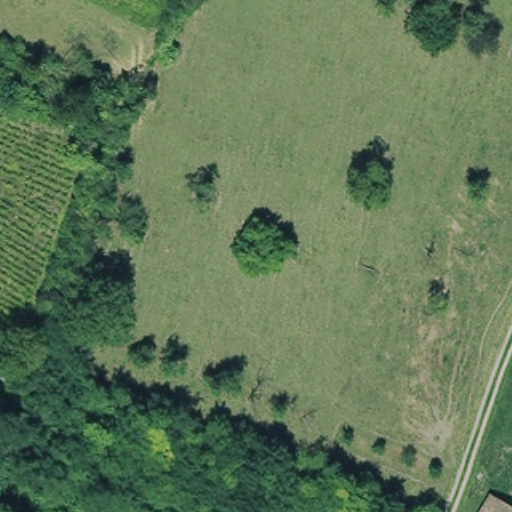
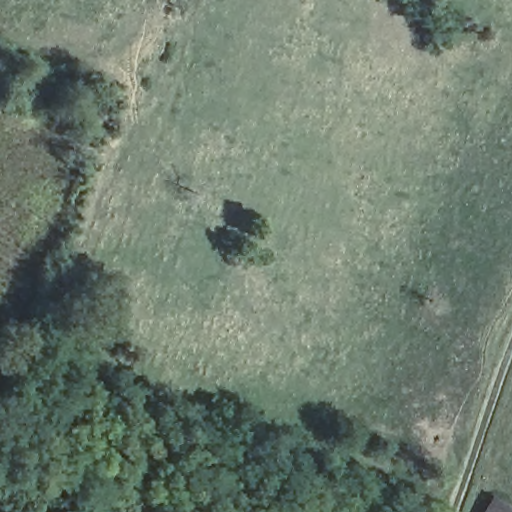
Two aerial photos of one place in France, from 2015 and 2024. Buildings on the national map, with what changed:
unchanged [(512,503),(512,512),(484,512),(495,492),(512,503)]

